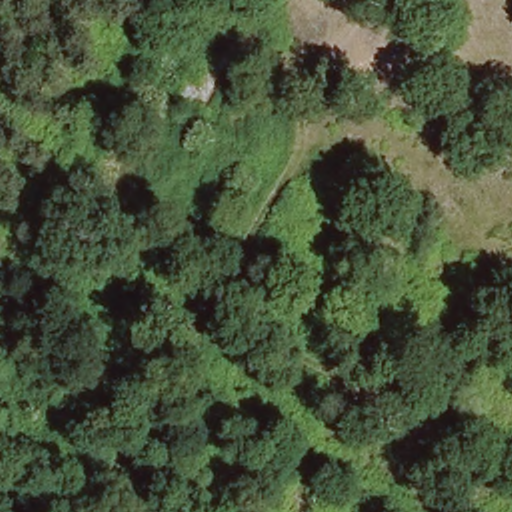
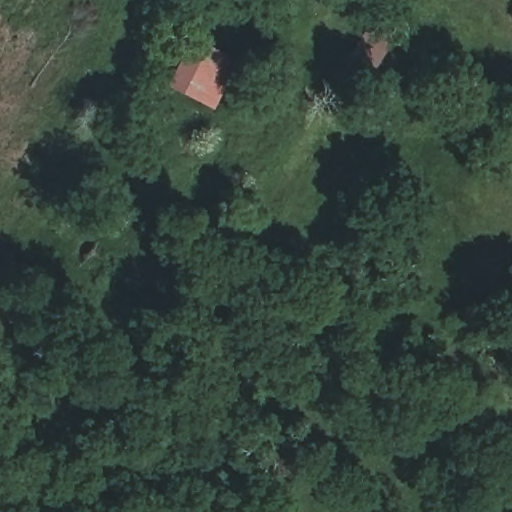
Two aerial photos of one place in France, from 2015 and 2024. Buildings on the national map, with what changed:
unchanged [(221,35),(193,25),(200,6),(230,21),(221,35)]
new [(211,109),(168,86),(192,38),(235,60),(211,109)]

